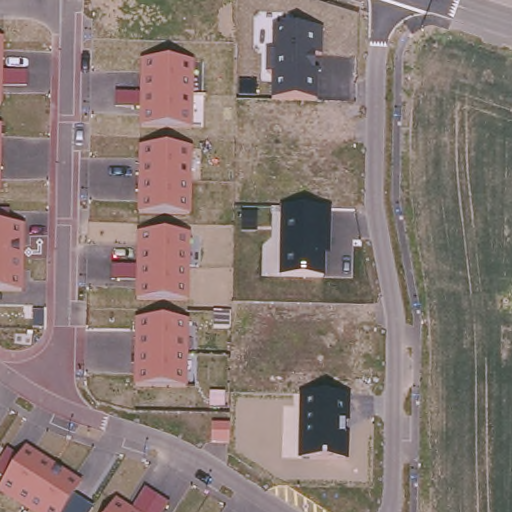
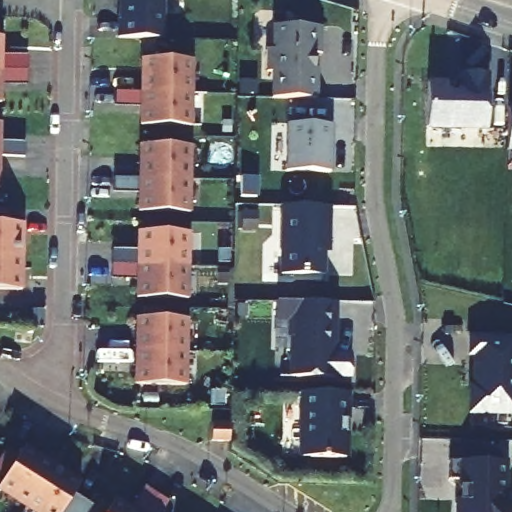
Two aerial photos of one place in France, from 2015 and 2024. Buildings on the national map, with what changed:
new [(120,17),(120,5),(119,5),(119,0),(163,0),(162,36),(117,35),(117,17),(120,17)]
unchanged [(271,24),(320,27),(315,101),(265,96),(271,24)]
unchanged [(0,101),(0,35),(1,101),(0,101)]
unchanged [(137,59),(195,59),(193,126),(137,125),(137,59)]
new [(445,78),(445,81),(458,81),(459,69),(487,70),(484,128),(424,125),(426,76),(445,78)]
new [(512,151),(508,151),(509,105),(512,105),(512,151)]
new [(333,125),(331,172),(286,171),(287,124),(333,125)]
unchanged [(135,209),(137,143),(193,145),(192,212),(136,209),(135,209)]
unchanged [(280,205),(329,207),(326,278),(275,273),(280,205)]
unchanged [(0,288),(0,222),(20,222),(20,289),(0,288)]
unchanged [(135,229),(188,230),(187,295),(133,293),(135,229)]
new [(275,299),(334,300),(333,339),(330,339),(330,352),(350,353),(349,374),(332,374),(332,375),(288,374),(290,317),(274,317),(275,299)]
unchanged [(132,317),(187,317),(186,387),(133,385),(132,317)]
new [(472,358),(467,358),(467,334),(512,335),(512,416),(467,415),(472,358)]
unchanged [(297,391),(346,392),(346,460),(295,457),(297,391)]
unchanged [(0,492),(0,480),(25,443),(80,477),(57,512),(31,512),(0,492)]
new [(508,471),(504,471),(504,500),(512,508),(512,512),(457,512),(459,478),(450,478),(450,460),(508,463),(508,471)]
unchanged [(113,498),(127,507),(139,488),(163,504),(157,512),(104,512),(113,498)]

